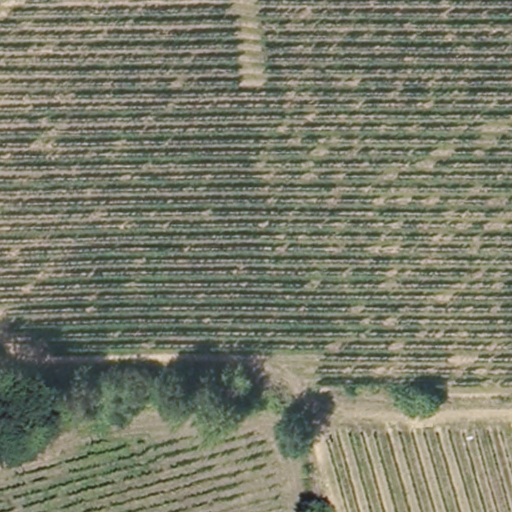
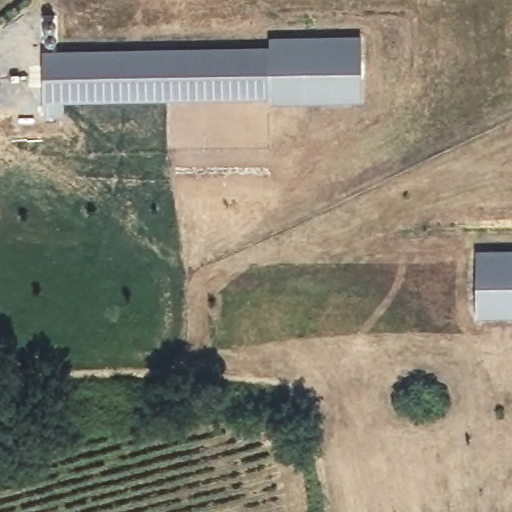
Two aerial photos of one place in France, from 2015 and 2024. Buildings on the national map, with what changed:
new [(362,33),(364,104),(273,106),(273,93),(272,44),(271,35),(362,33)]
new [(272,44),(273,93),(67,97),(67,112),(47,113),(46,49),(272,44)]
new [(476,250),(512,250),(512,318),(477,317),(476,250)]

